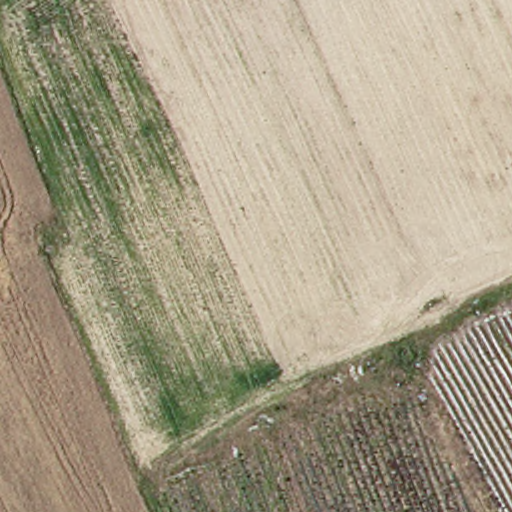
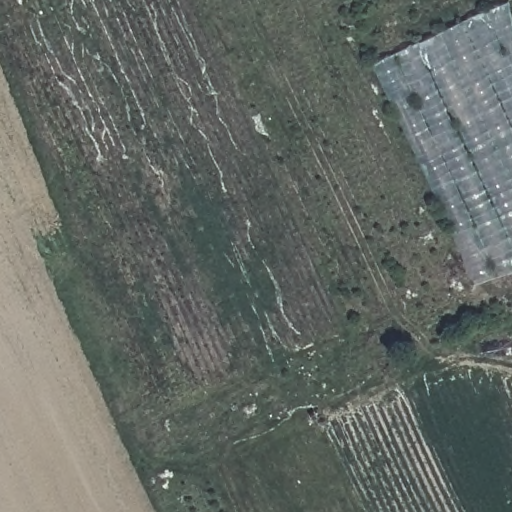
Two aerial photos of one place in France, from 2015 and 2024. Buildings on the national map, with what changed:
demolished [(312,8),(308,0),(382,0),(447,141),(427,152),(482,271),(441,290),(312,8)]
new [(512,4),(512,273),(473,286),(374,64),(512,4)]

